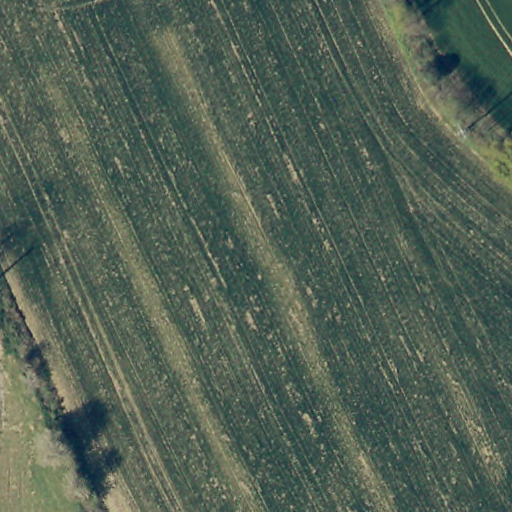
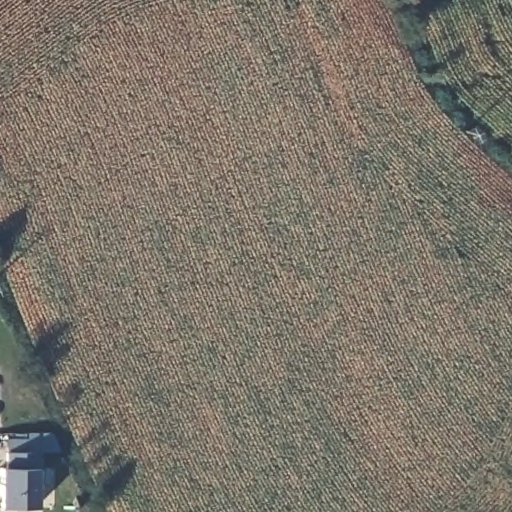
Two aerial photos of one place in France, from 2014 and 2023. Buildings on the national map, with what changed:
new [(3,467),(5,438),(35,437),(35,432),(50,431),(60,450),(35,451),(34,468),(37,468),(38,507),(0,506),(0,500),(3,467)]

